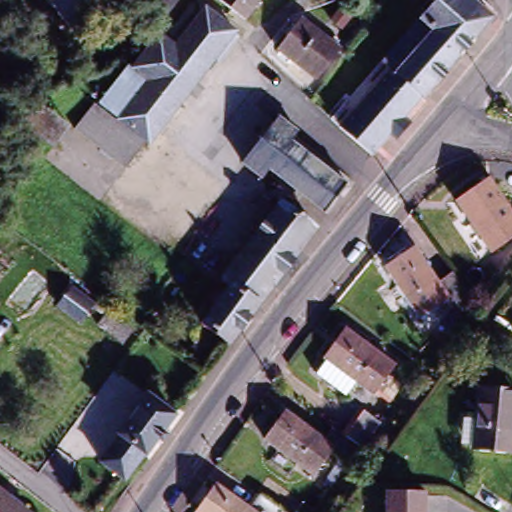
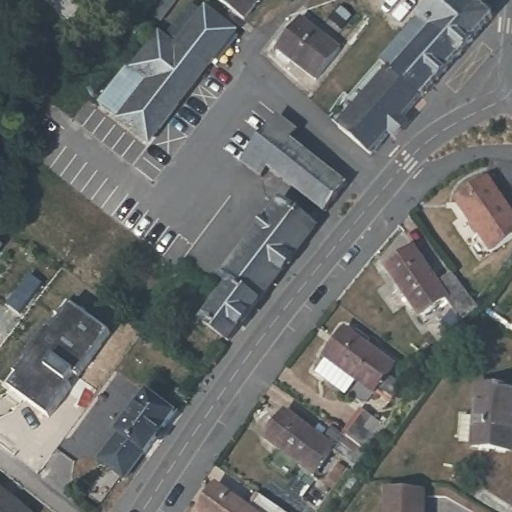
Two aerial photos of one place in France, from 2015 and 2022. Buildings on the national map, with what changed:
unchanged [(98,18),(70,40),(33,0),(80,0),(98,18)]
unchanged [(242,21),(214,0),(258,0),(242,21)]
unchanged [(394,75),(412,53),(400,42),(411,30),(402,22),(409,13),(419,21),(436,0),(472,0),(494,19),(422,100),(420,99),(395,76),(394,75)]
unchanged [(154,146),(100,113),(133,69),(164,29),(185,40),(209,6),(243,34),(154,146)]
unchanged [(292,20),(330,51),(306,81),(267,51),(292,20)]
unchanged [(338,128),(330,120),(400,41),(400,42),(412,53),(394,75),(395,76),(345,135),(338,128)]
unchanged [(370,156),(345,135),(395,76),(420,99),(403,119),(409,125),(395,140),(389,135),(370,156)]
unchanged [(262,170),(256,180),(237,165),(272,119),(291,134),(285,143),(342,187),(320,215),(262,170)]
unchanged [(512,216),(512,239),(492,253),(462,210),(458,204),(464,200),(490,183),(512,216)]
unchanged [(270,204),(277,209),(287,217),(290,214),(294,217),(292,220),(307,231),(249,306),(221,286),(213,280),(270,204)]
unchanged [(415,315),(382,265),(410,247),(433,280),(449,270),(476,305),(459,320),(447,304),(420,322),(415,315)]
unchanged [(219,345),(192,325),(204,309),(200,305),(207,296),(211,300),(221,286),(249,306),(219,345)]
demolished [(70,290),(75,293),(92,305),(90,309),(79,324),(57,307),(57,306),(70,290)]
new [(111,332),(49,417),(10,388),(15,378),(12,375),(48,326),(52,330),(70,303),(111,332)]
demolished [(107,315),(130,332),(122,345),(115,340),(98,327),(104,320),(107,315)]
unchanged [(389,394),(378,386),(375,390),(359,378),(358,377),(347,392),(317,371),(329,356),(327,355),(347,327),(395,361),(388,372),(399,380),(389,394)]
unchanged [(475,446),(475,442),(462,441),(464,415),(477,415),(480,384),(512,387),(512,449),(475,446)]
unchanged [(175,412),(126,487),(87,462),(134,392),(175,412)]
unchanged [(360,411),(365,415),(382,427),(376,438),(380,442),(370,456),(368,455),(357,471),(332,455),(317,476),(267,442),(287,415),(325,442),(334,430),(342,436),(360,411)]
unchanged [(224,481),(257,504),(265,492),(295,512),(206,512),(204,510),(224,481)]
unchanged [(510,501),(504,512),(499,512),(474,496),(482,483),(510,501)]
unchanged [(394,490),(431,490),(431,510),(431,512),(393,512),(394,510),(394,490)]
unchanged [(0,512),(0,500),(15,512),(0,512)]

